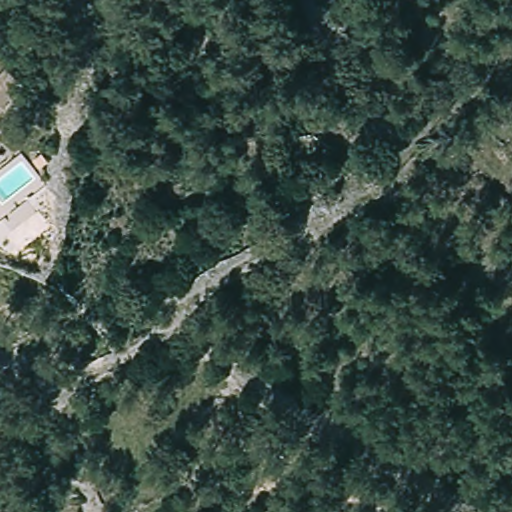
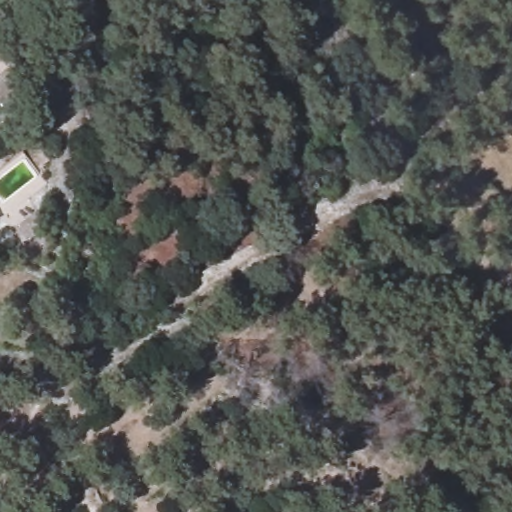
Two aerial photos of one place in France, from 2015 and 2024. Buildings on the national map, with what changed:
unchanged [(29,79),(5,105),(0,101),(0,52),(29,79)]

